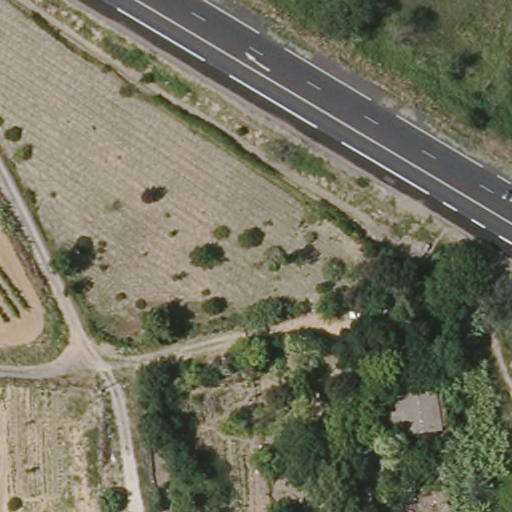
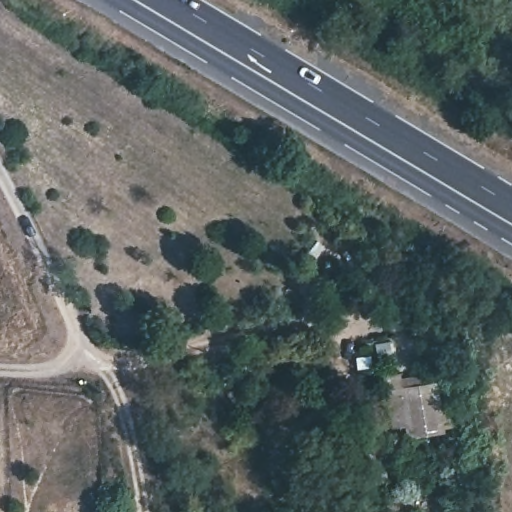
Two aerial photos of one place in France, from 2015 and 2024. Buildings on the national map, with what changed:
unchanged [(442,436),(443,440),(405,446),(403,435),(391,436),(382,381),(400,382),(400,386),(434,380),(435,390),(445,388),(452,435),(442,436)]

